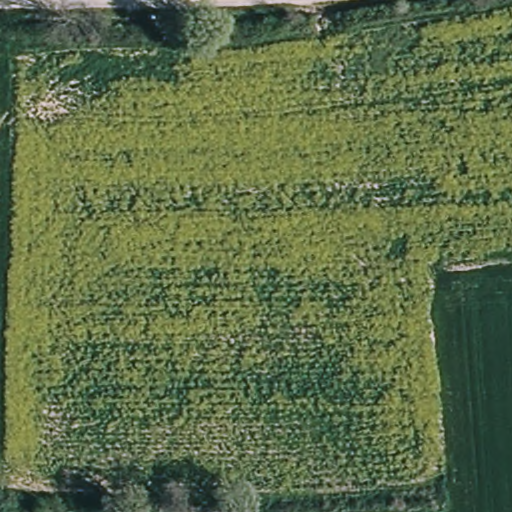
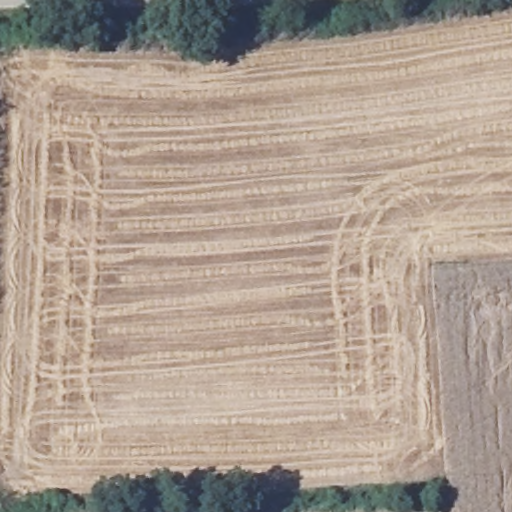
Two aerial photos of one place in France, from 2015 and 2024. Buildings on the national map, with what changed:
[]

